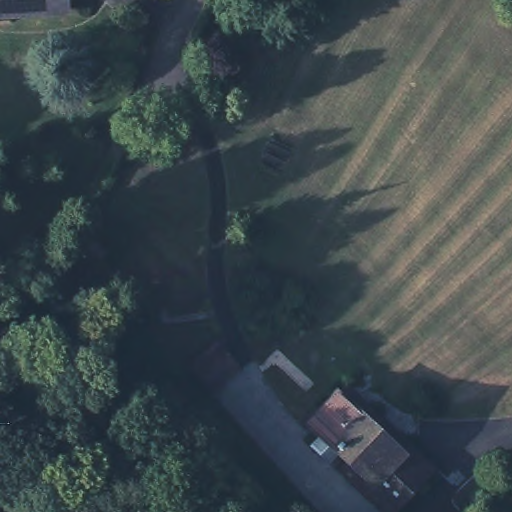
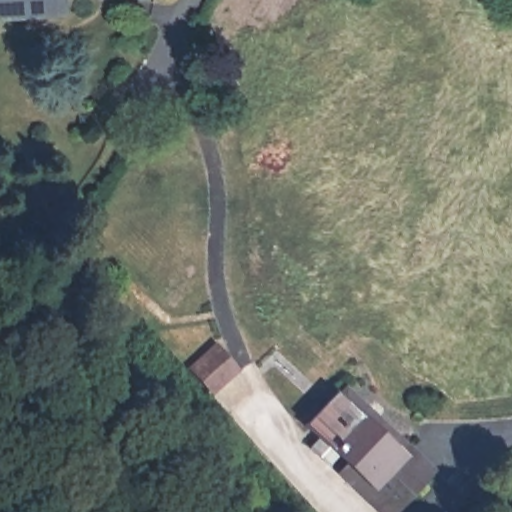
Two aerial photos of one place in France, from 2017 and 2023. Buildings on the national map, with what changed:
unchanged [(0,9),(0,0),(63,0),(64,5),(0,9)]
unchanged [(389,512),(386,512),(335,464),(344,454),(306,418),(334,386),(432,468),(389,512)]

